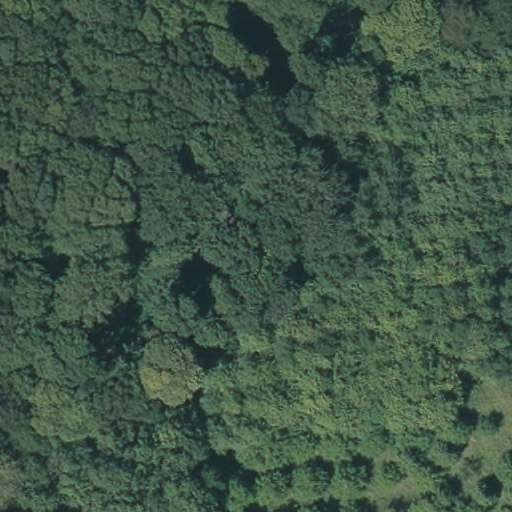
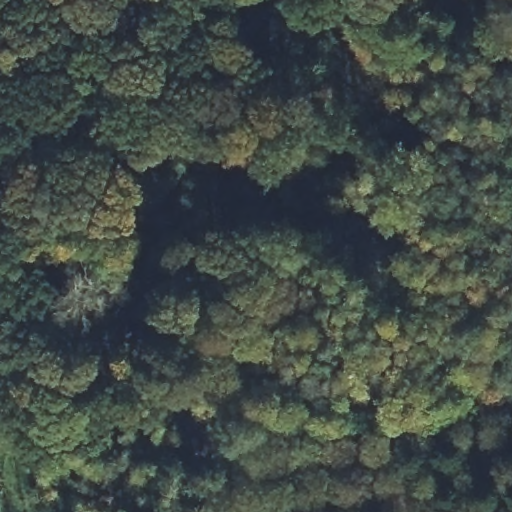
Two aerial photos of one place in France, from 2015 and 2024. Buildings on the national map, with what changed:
[]

